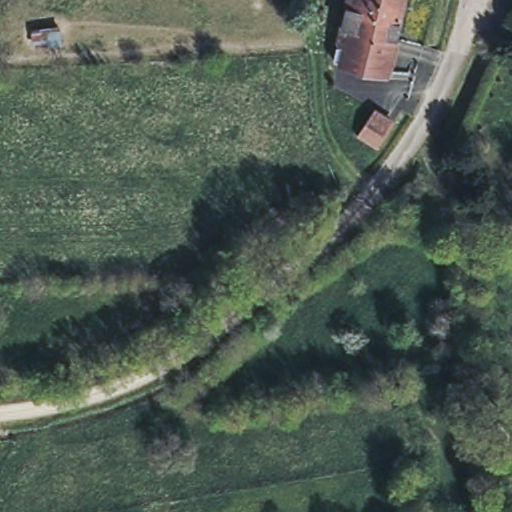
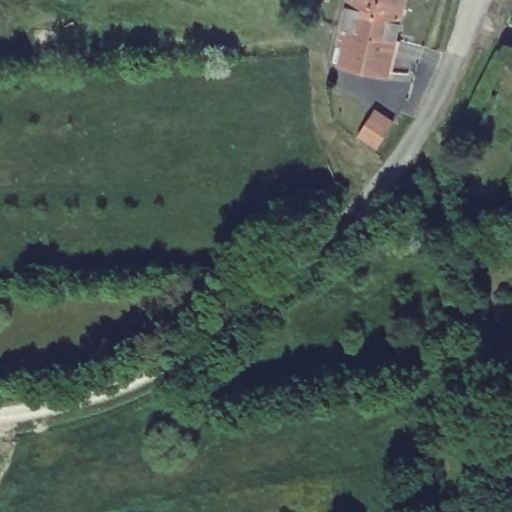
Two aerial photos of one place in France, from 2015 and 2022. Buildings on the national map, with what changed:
unchanged [(385,73),(332,61),(346,0),(402,0),(385,73)]
unchanged [(60,27),(62,43),(36,46),(34,30),(60,27)]
unchanged [(395,112),(372,142),(337,119),(359,87),(395,112)]

